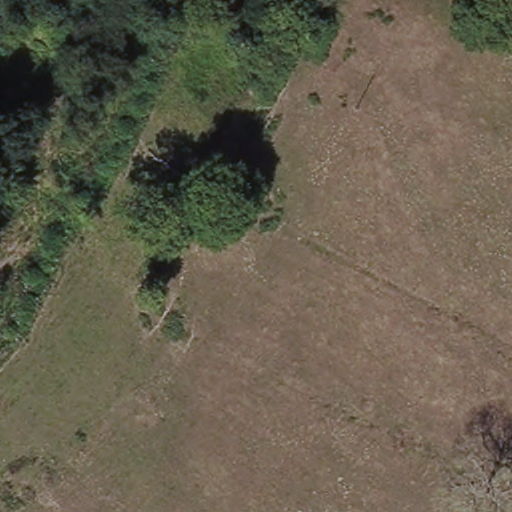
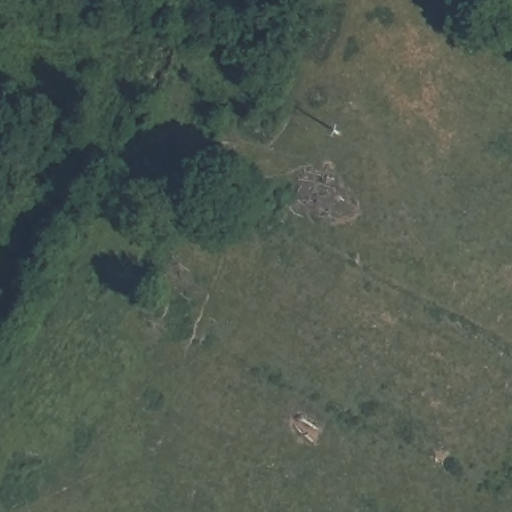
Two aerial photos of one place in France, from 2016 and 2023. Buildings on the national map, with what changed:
[]

